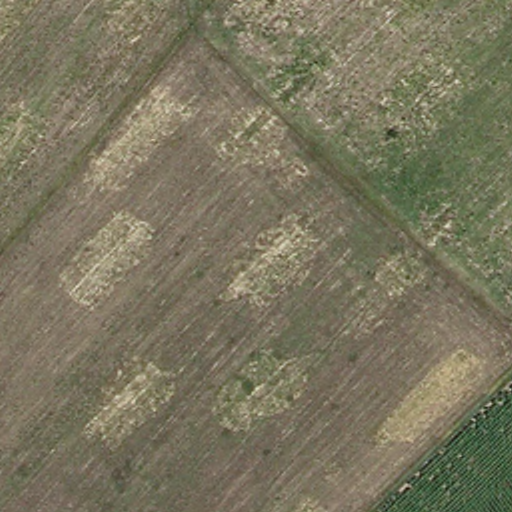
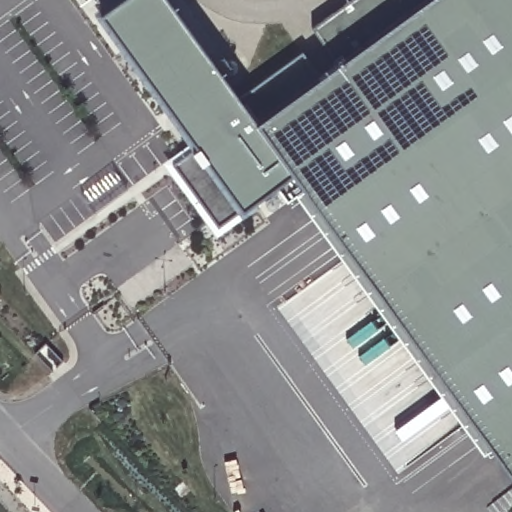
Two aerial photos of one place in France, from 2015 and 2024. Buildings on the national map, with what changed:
new [(298,173),(289,179),(247,210),(200,146),(198,147),(102,14),(121,0),(168,0),(242,100),(299,52),(318,78),(338,64),(311,27),(349,0),(512,0),(512,470),(499,451),(298,173)]
new [(200,146),(247,210),(222,228),(176,163),(200,146)]
new [(298,173),(499,451),(491,457),(289,179),(298,173)]

